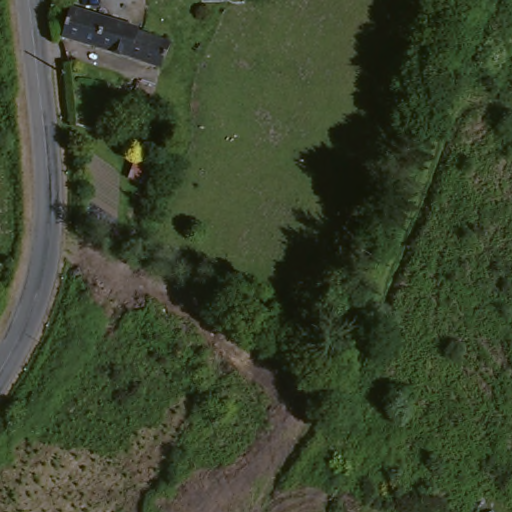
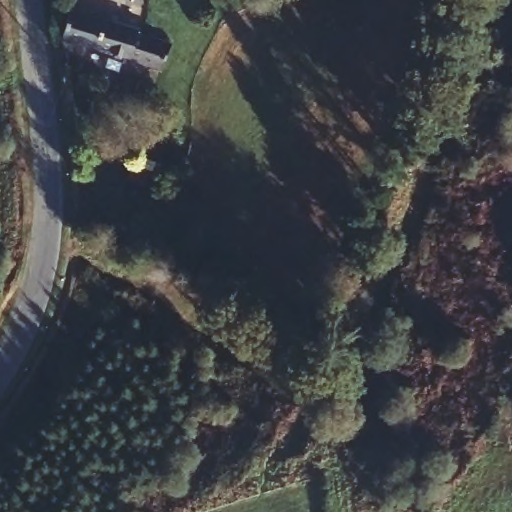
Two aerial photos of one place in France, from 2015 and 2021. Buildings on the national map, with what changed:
unchanged [(161,67),(148,63),(131,56),(63,33),(73,9),(141,30),(170,40),(161,67)]
unchanged [(173,159),(164,182),(141,173),(149,151),(173,159)]

